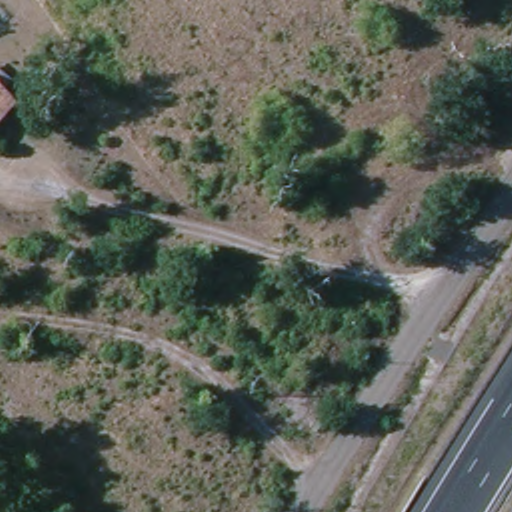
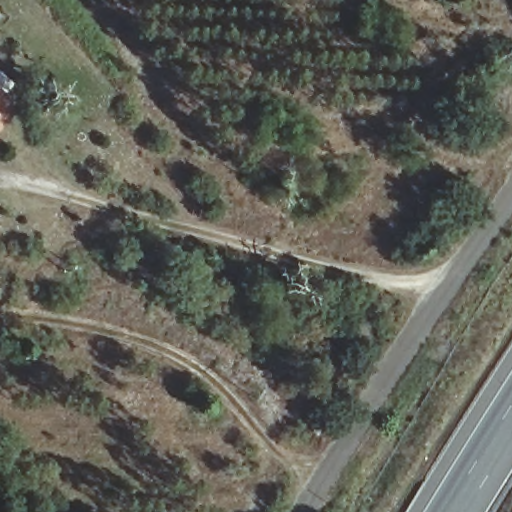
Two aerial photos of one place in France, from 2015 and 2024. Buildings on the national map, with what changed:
unchanged [(40,75),(20,101),(0,124),(0,71),(17,52),(40,75)]

